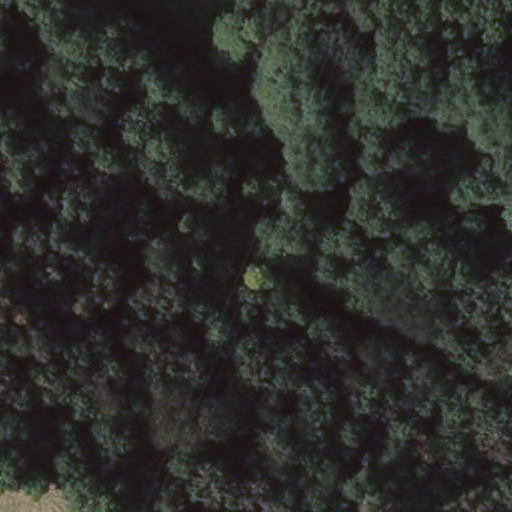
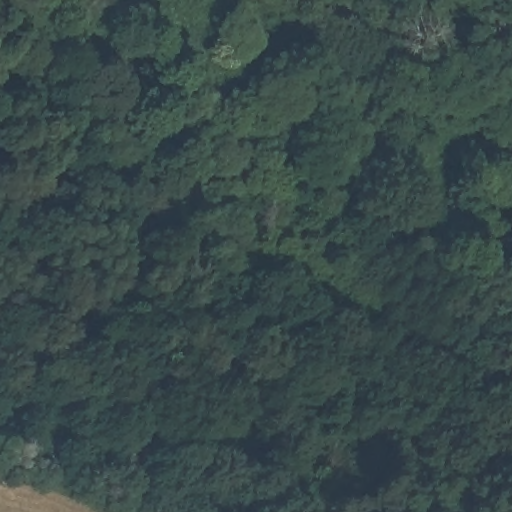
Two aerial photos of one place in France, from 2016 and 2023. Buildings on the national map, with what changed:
[]

